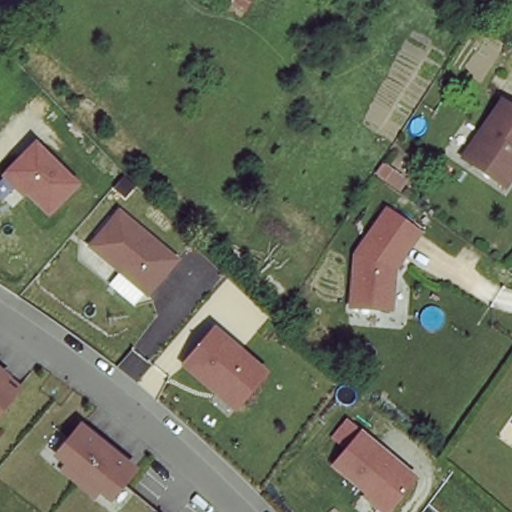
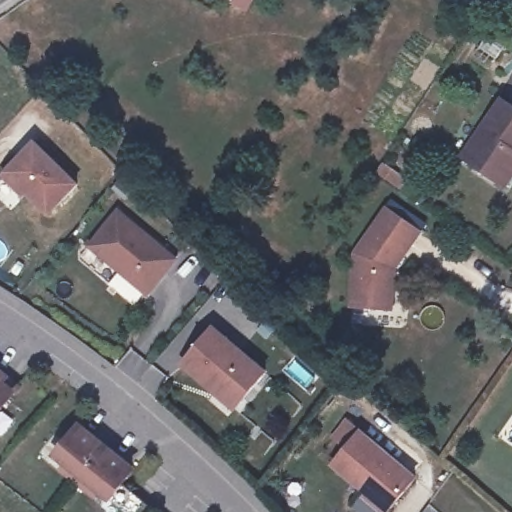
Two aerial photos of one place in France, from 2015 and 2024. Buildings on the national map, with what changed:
unchanged [(502,185),(495,179),(463,157),(500,100),(512,108),(512,170),(502,185)]
unchanged [(80,186),(49,221),(2,176),(35,141),(80,186)]
unchanged [(393,312),(347,308),(354,255),(386,205),(422,232),(398,270),(393,312)]
unchanged [(149,297),(88,249),(118,209),(181,260),(149,297)]
unchanged [(235,412),(181,365),(215,325),(268,373),(235,412)]
unchanged [(0,374),(17,387),(0,406),(0,374)]
unchanged [(135,468),(106,501),(49,452),(80,423),(135,468)]
unchanged [(390,512),(378,512),(329,466),(361,428),(419,477),(390,512)]

